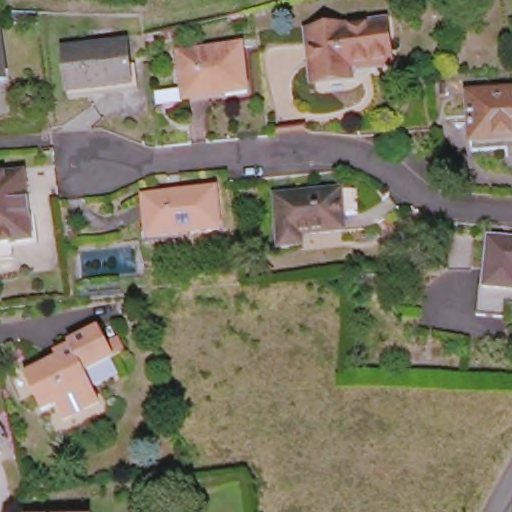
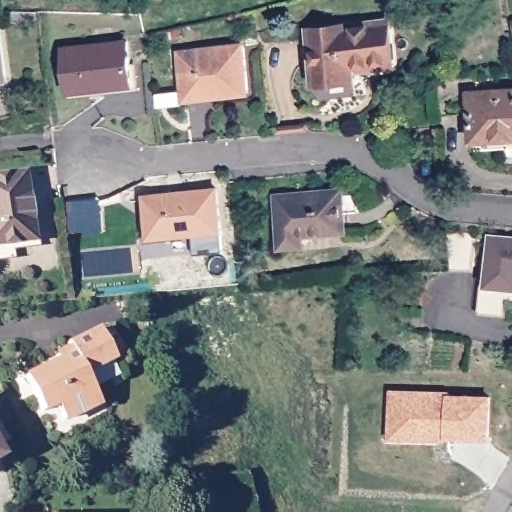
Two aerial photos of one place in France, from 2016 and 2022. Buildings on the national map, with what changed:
unchanged [(393,64),(353,69),(354,80),(314,85),(309,39),(308,31),(327,29),(388,21),(393,64)]
unchanged [(107,45),(106,39),(121,37),(122,42),(128,42),(133,85),(68,93),(63,50),(107,45)]
unchanged [(7,80),(0,81),(0,38),(7,80)]
unchanged [(243,45),(248,93),(227,95),(226,90),(184,95),(179,53),(243,45)]
unchanged [(512,135),(472,137),(469,93),(512,90),(512,135)]
unchanged [(25,173),(33,241),(13,244),(14,258),(0,260),(0,176),(25,173)]
unchanged [(217,190),(221,230),(149,238),(145,197),(217,190)]
unchanged [(342,191),(346,232),(311,235),(311,231),(302,232),(303,245),(281,247),(277,196),(342,191)]
unchanged [(512,299),(508,298),(506,314),(481,311),(483,281),(484,282),(489,232),(512,235),(512,299)]
unchanged [(476,235),(473,267),(449,267),(446,234),(476,235)]
unchanged [(29,377),(57,363),(61,371),(67,368),(63,360),(60,355),(75,348),(74,345),(104,329),(112,345),(124,338),(131,352),(119,357),(119,358),(89,373),(104,403),(69,421),(60,405),(48,412),(29,377)]
new [(447,438),(447,433),(431,432),(431,439),(394,438),(393,392),(448,393),(448,397),(489,398),(488,440),(447,438)]
unchanged [(5,457),(0,460),(0,448),(5,457)]

